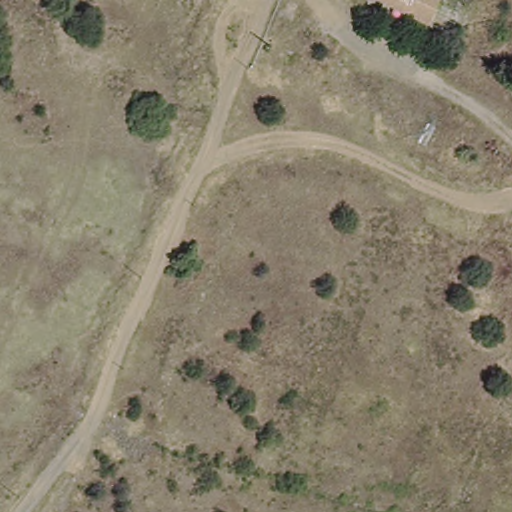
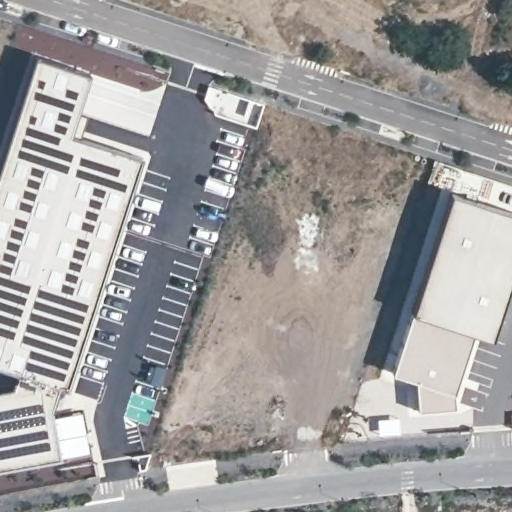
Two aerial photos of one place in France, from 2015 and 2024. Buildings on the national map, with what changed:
demolished [(438,0),(429,19),(390,0),(438,0)]
new [(37,57),(90,74),(77,112),(85,116),(78,138),(141,157),(68,390),(63,388),(55,412),(51,410),(53,415),(80,411),(89,451),(60,455),(60,457),(0,469),(0,390),(13,387),(17,375),(0,369),(0,167),(37,57)]
new [(512,211),(512,276),(500,313),(491,340),(476,335),(410,311),(451,191),(512,211)]
new [(410,311),(476,335),(458,391),(456,410),(417,411),(415,381),(390,374),(410,311)]

